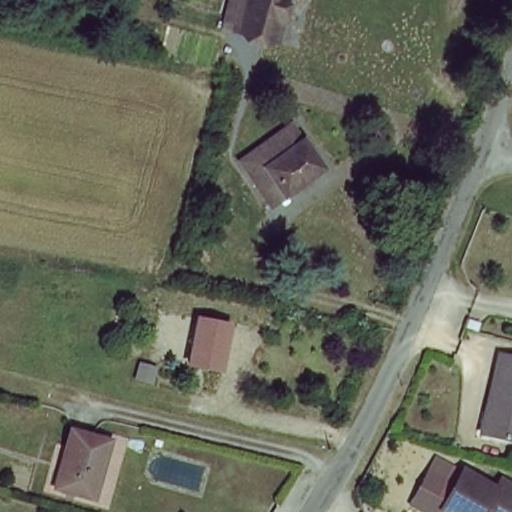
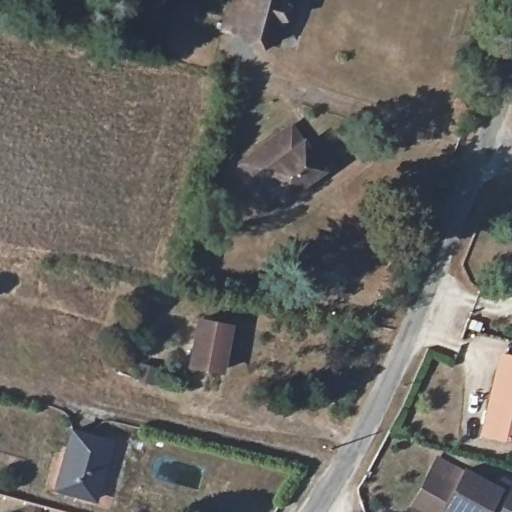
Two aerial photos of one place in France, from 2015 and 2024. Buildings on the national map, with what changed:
unchanged [(237,36),(240,23),(227,20),(233,0),(291,0),(275,48),(237,36)]
unchanged [(255,188),(235,156),(297,120),(327,165),(281,194),(265,205),(255,188)]
unchanged [(233,326),(223,374),(185,367),(193,318),(233,326)]
unchanged [(512,447),(484,439),(502,353),(512,355),(512,447)]
unchanged [(56,489),(72,429),(118,439),(100,498),(56,489)]
unchanged [(468,468),(499,482),(502,474),(512,479),(512,512),(444,512),(468,468)]

